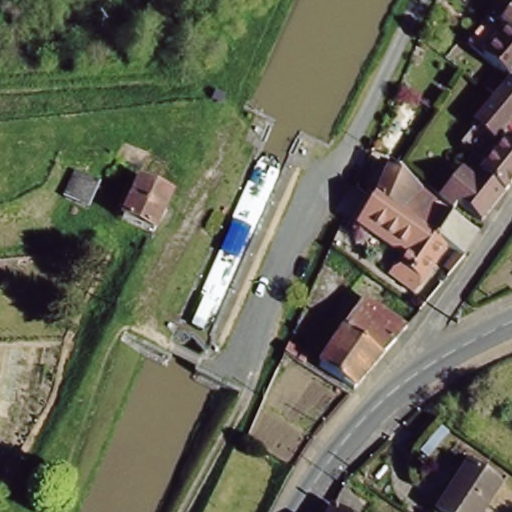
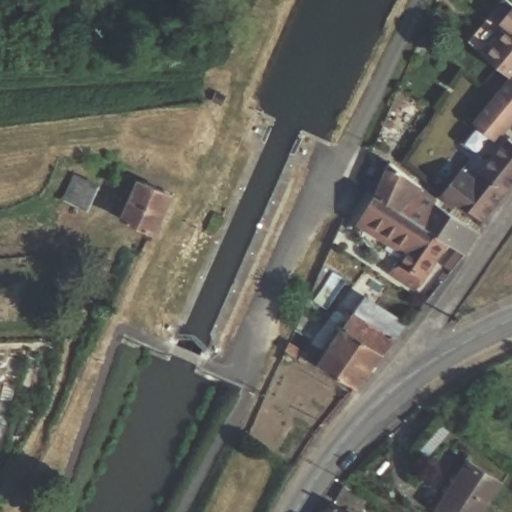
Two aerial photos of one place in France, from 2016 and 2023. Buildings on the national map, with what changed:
unchanged [(497,87),(482,75),(497,58),(468,33),(496,0),(512,0),(512,100),(497,87)]
unchanged [(512,100),(512,109),(477,150),(460,134),(497,87),(512,100)]
unchanged [(217,89),(227,93),(223,103),(212,98),(217,89)]
unchanged [(461,159),(474,170),(507,129),(512,133),(512,174),(481,212),(459,195),(454,201),(438,188),(461,159)]
unchanged [(381,150),(392,156),(420,177),(436,191),(434,194),(474,221),(478,224),(465,245),(447,233),(367,182),(381,150)]
unchanged [(104,178),(89,211),(60,199),(73,167),(104,178)]
unchanged [(169,192),(152,232),(117,217),(135,177),(169,192)]
unchanged [(447,233),(413,280),(390,264),(404,244),(350,208),(367,182),(447,233)]
unchanged [(354,383),(319,360),(363,293),(406,320),(354,383)]
unchanged [(289,340),(310,351),(305,361),(285,349),(289,340)]
unchanged [(500,477),(477,512),(451,512),(437,502),(467,456),(500,477)]
unchanged [(359,488),(349,505),(321,488),(330,474),(331,471),(359,488)]
unchanged [(348,512),(307,512),(317,494),(348,512)]

